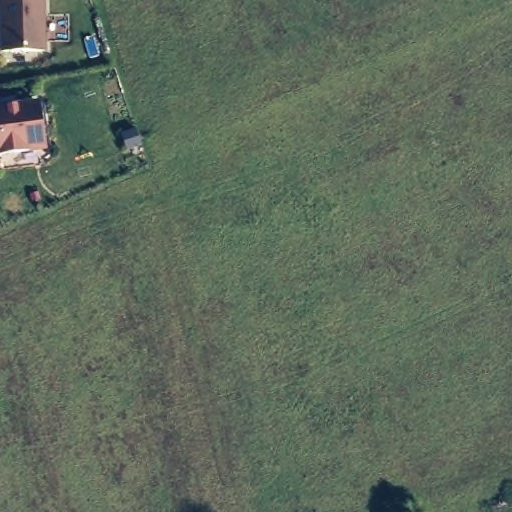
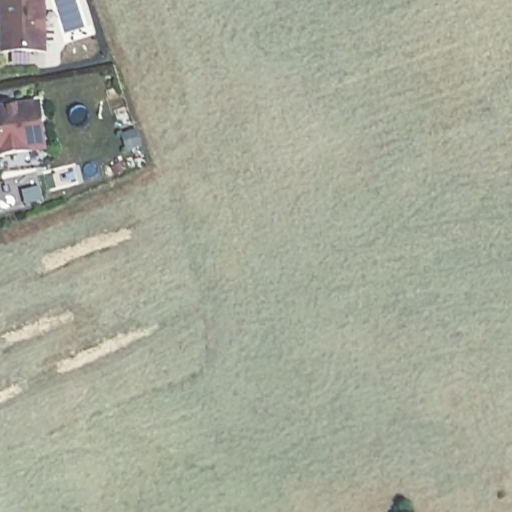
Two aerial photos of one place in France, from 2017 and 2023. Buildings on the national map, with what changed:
unchanged [(45,51),(4,52),(2,7),(0,7),(0,0),(45,0),(45,51)]
unchanged [(47,153),(0,157),(0,105),(42,101),(47,153)]

